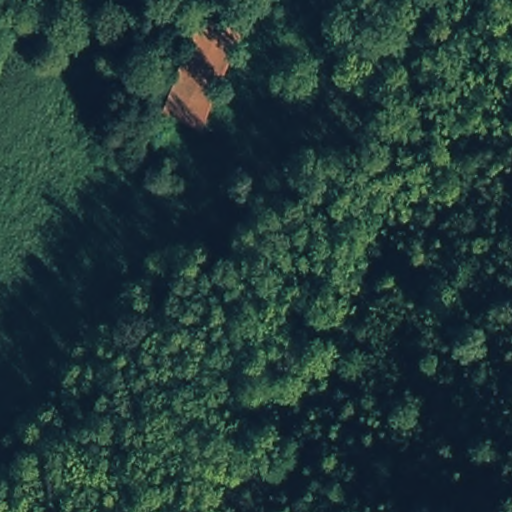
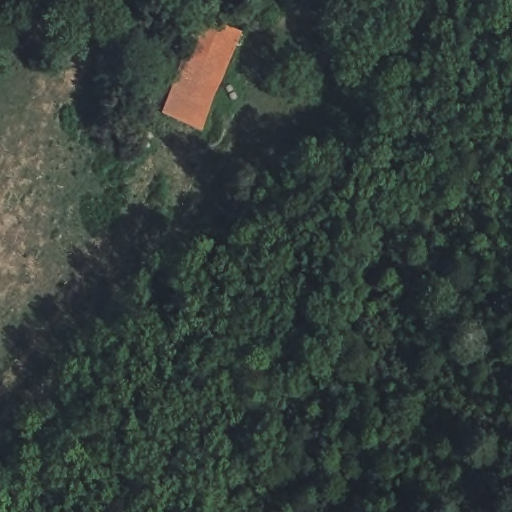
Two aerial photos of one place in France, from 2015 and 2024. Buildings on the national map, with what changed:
unchanged [(239,50),(206,134),(163,113),(193,27),(239,50)]

